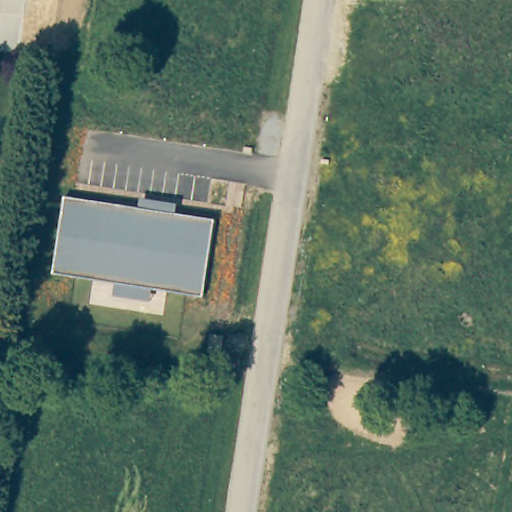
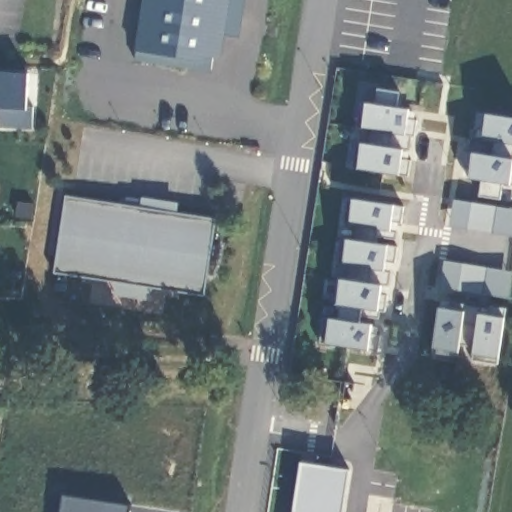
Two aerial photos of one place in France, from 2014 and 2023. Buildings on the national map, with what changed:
new [(132,50),(141,0),(243,0),(237,37),(222,35),(219,55),(211,56),(210,72),(134,59),(132,50)]
new [(30,128),(0,127),(0,107),(0,71),(27,72),(26,109),(32,108),(30,128)]
new [(320,342),(322,316),(330,317),(336,318),(339,304),(336,304),(332,302),(336,277),(341,277),(345,263),(342,263),(338,262),(341,237),(347,238),(350,238),(355,224),(348,223),(344,222),(347,197),(355,197),(357,168),(353,166),(355,141),(362,141),(366,142),(367,129),(362,128),(357,126),(360,100),(366,101),(375,103),(378,88),(399,91),(395,106),(410,108),(370,349),(323,343),(320,342)]
new [(468,178),(470,168),(462,167),(465,150),(472,151),(477,112),(486,114),(512,117),(512,180),(512,183),(503,182),(501,198),(480,194),(482,179),(468,178)]
unchanged [(140,208),(141,197),(179,203),(177,214),(215,219),(204,296),(152,289),(151,300),(112,296),(115,282),(53,273),(65,197),(140,208)]
new [(453,199),(512,208),(512,235),(450,224),(453,199)]
new [(512,278),(508,298),(440,286),(443,259),(512,271),(512,278)]
new [(437,306),(466,311),(505,317),(497,359),(432,347),(437,306)]
new [(302,463),(348,469),(342,512),(294,512),(302,463)]
new [(64,492),(133,503),(132,512),(60,512),(64,492)]

